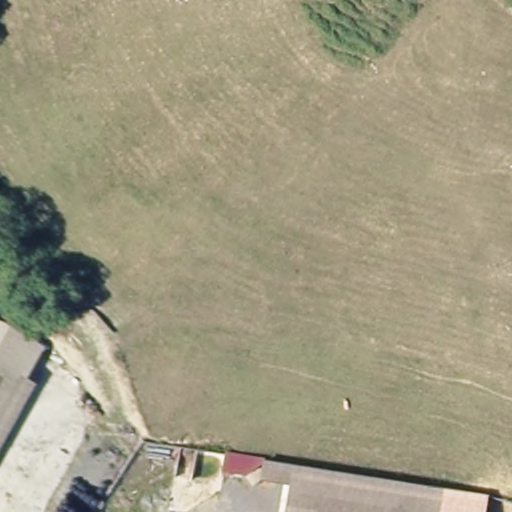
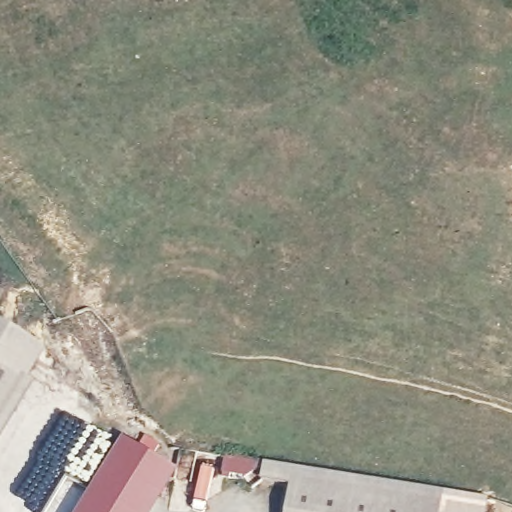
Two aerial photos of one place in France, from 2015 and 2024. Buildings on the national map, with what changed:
unchanged [(45,345),(28,377),(34,380),(0,437),(0,319),(45,345)]
new [(178,468),(153,512),(76,512),(121,433),(178,468)]
unchanged [(289,484),(260,479),(262,461),(443,489),(440,512),(285,512),(289,484)]
unchanged [(443,489),(489,495),(487,512),(440,512),(443,489)]

